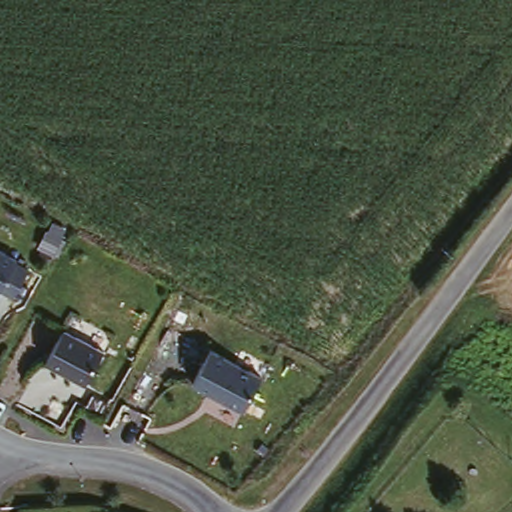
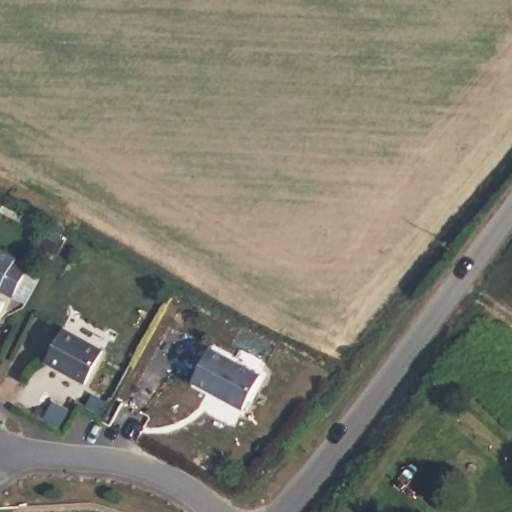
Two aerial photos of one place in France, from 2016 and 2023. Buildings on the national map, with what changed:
unchanged [(16,260),(31,267),(14,296),(1,289),(0,291),(0,247),(18,255),(16,260)]
unchanged [(106,350),(86,385),(46,364),(65,330),(106,350)]
unchanged [(215,347),(262,373),(245,407),(197,382),(215,347)]

